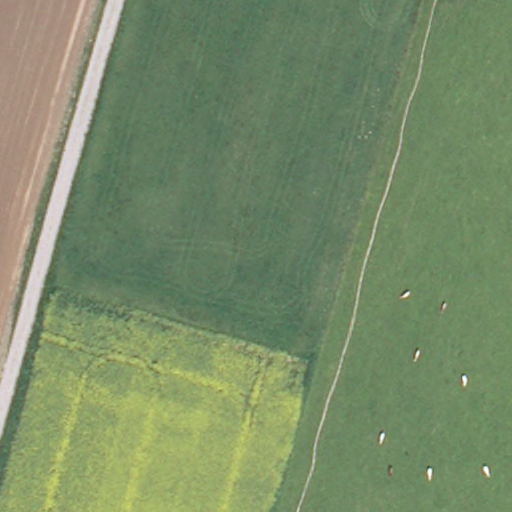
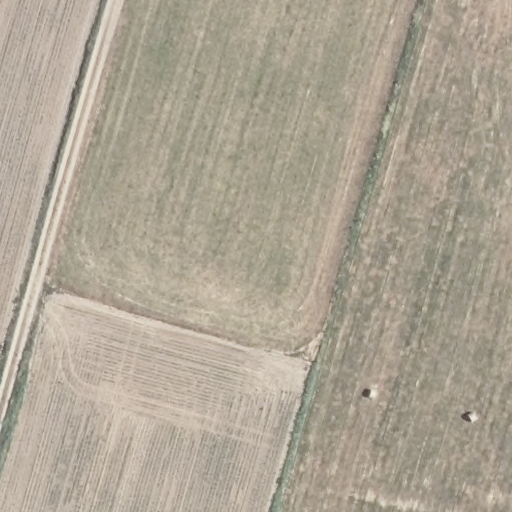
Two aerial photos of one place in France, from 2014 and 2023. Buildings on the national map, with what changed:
[]

